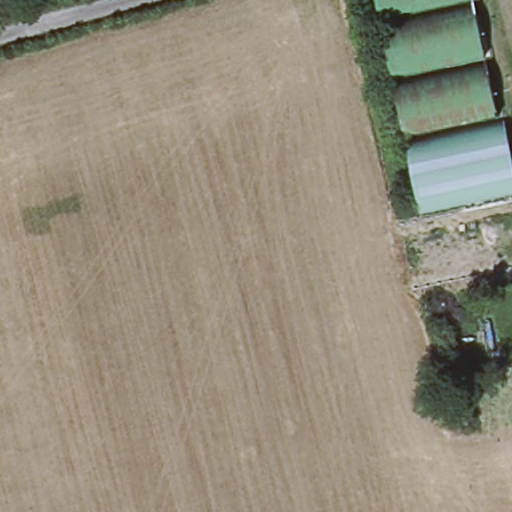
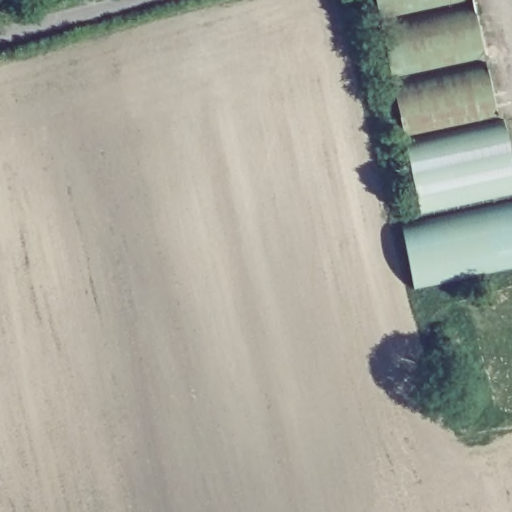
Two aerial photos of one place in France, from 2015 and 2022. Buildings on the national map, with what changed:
unchanged [(376,0),(470,0),(380,19),(376,0)]
unchanged [(380,22),(472,3),(485,58),(391,77),(380,22)]
unchanged [(392,81),(485,61),(498,116),(404,136),(392,81)]
unchanged [(405,140),(503,119),(512,158),(512,194),(420,214),(405,140)]
new [(512,201),(512,268),(414,288),(401,224),(512,201)]

